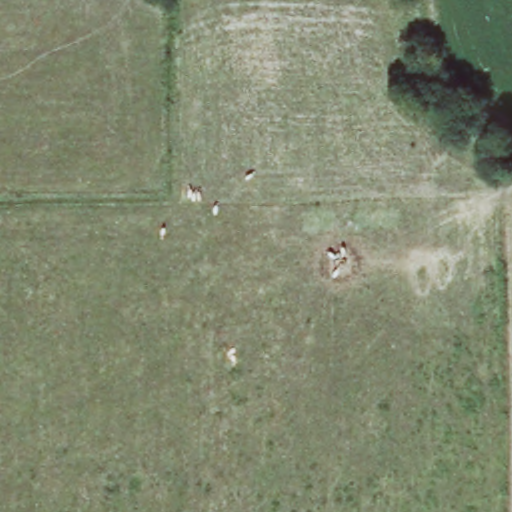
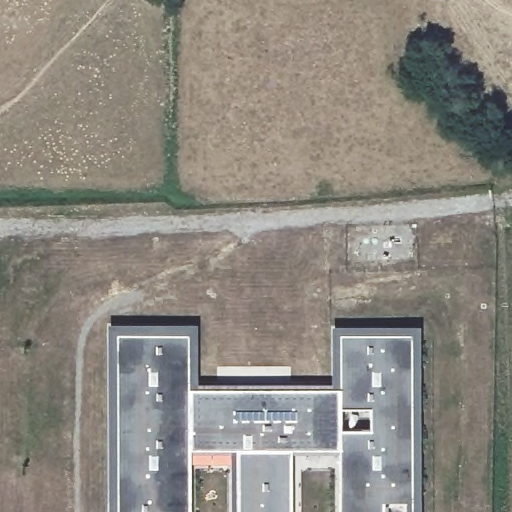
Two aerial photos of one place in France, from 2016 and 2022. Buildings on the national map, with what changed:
new [(108,323),(196,326),(196,388),(332,388),(330,326),(418,325),(419,512),(338,512),(337,451),(292,451),(292,512),(230,512),(229,452),(191,451),(191,512),(109,512),(108,323)]

